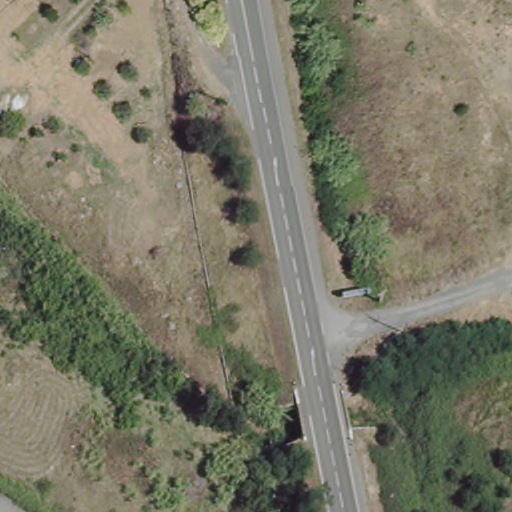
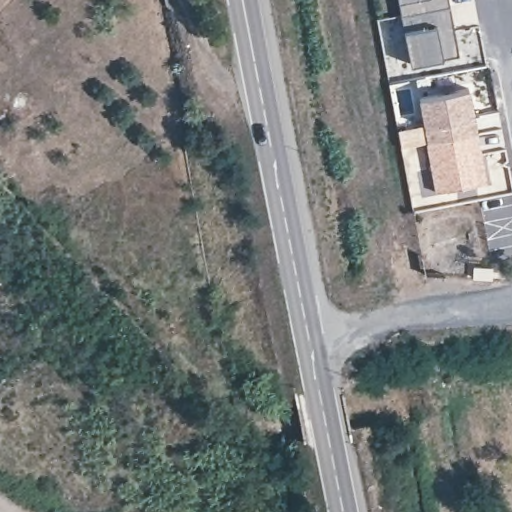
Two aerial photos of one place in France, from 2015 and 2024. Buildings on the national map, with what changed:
new [(448,9),(400,18),(397,0),(447,0),(448,9)]
new [(448,9),(458,57),(409,66),(400,18),(448,9)]
new [(467,90),(476,135),(426,145),(418,100),(467,90)]
new [(476,135),(485,184),(435,194),(426,145),(476,135)]
new [(495,271),(494,282),(475,281),(476,270),(495,271)]

